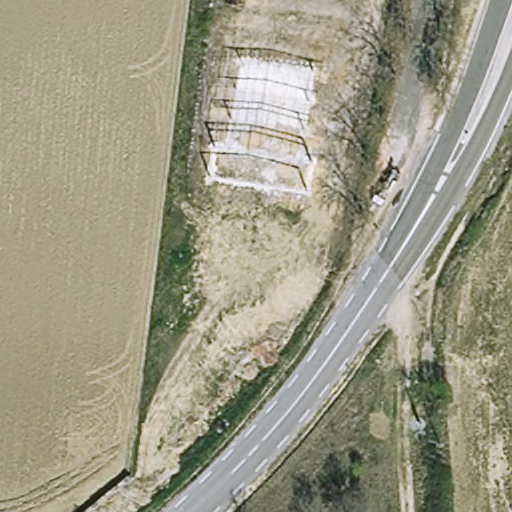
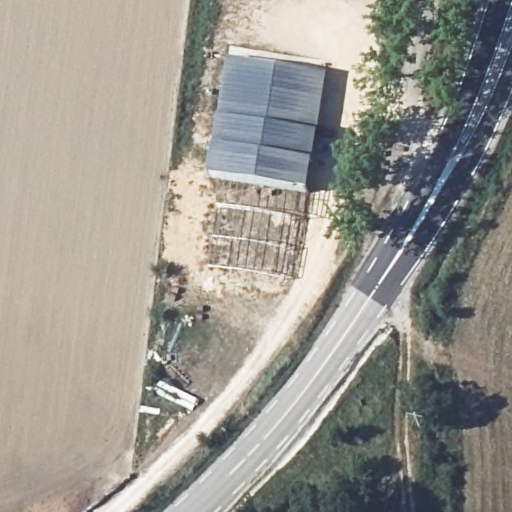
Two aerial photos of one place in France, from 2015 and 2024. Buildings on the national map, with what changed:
new [(239,56),(316,72),(289,204),(212,188),(239,56)]

